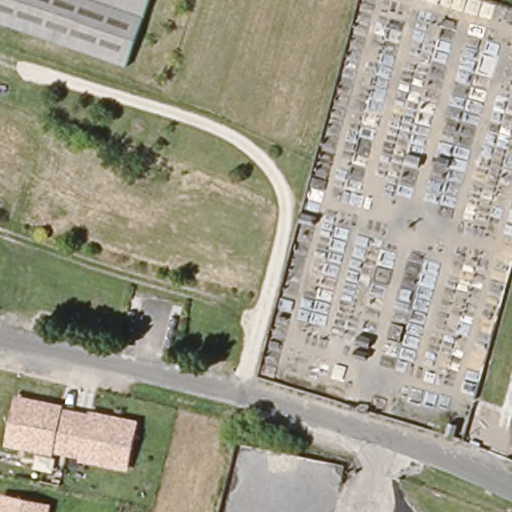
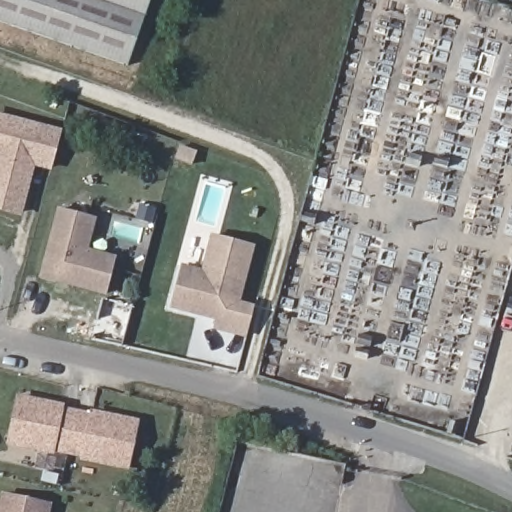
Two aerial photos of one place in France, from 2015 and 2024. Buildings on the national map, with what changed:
unchanged [(125,65),(0,21),(0,0),(147,0),(125,65)]
new [(61,129),(50,172),(35,168),(22,217),(0,212),(0,113),(61,129)]
new [(117,255),(107,296),(39,278),(57,207),(96,217),(89,248),(117,255)]
new [(211,330),(214,320),(169,309),(181,263),(200,268),(209,235),(255,246),(240,300),(254,304),(245,338),(211,330)]
unchanged [(11,441),(22,399),(61,407),(93,415),(135,423),(125,468),(82,458),(51,450),(11,441)]
unchanged [(50,509),(49,512),(1,512),(5,498),(50,509)]

